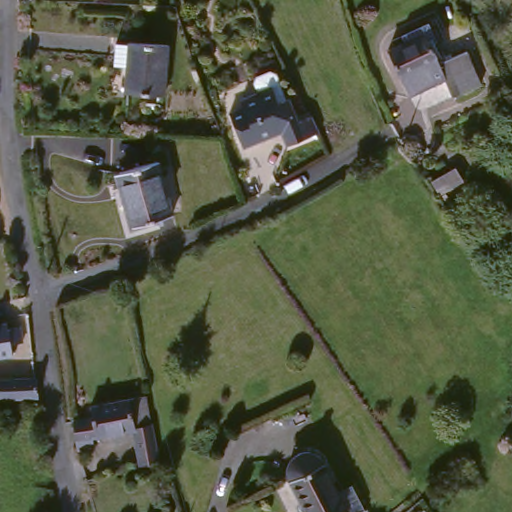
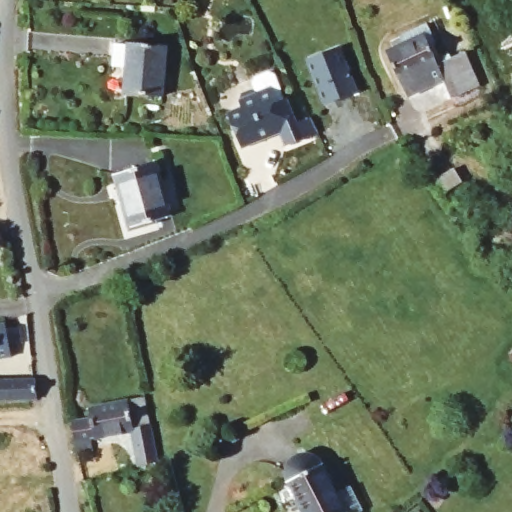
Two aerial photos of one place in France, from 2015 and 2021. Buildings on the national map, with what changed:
unchanged [(449,74),(413,91),(391,46),(408,38),(405,30),(433,17),(446,45),(438,48),(443,58),(471,46),(486,80),(458,93),(449,74)]
unchanged [(173,45),(169,96),(128,93),(130,67),(118,66),(119,43),(132,44),(132,42),(173,45)]
new [(306,59),(341,44),(359,90),(323,104),(306,59)]
unchanged [(289,144),(283,128),(268,134),(269,136),(241,147),(228,113),(241,107),(238,100),(241,95),(251,91),(253,91),(251,87),(254,79),(266,74),(274,77),(283,100),(286,99),(295,122),(310,116),(318,132),(289,144)]
unchanged [(176,211),(136,222),(122,168),(161,157),(176,211)]
unchanged [(431,182),(454,168),(463,181),(439,196),(431,182)]
unchanged [(456,219),(448,208),(456,202),(464,213),(456,219)]
unchanged [(474,222),(498,257),(488,264),(476,251),(461,231),(474,222)]
unchanged [(12,324),(23,322),(26,339),(15,339),(17,351),(0,354),(0,320),(11,318),(12,324)]
unchanged [(0,399),(0,379),(35,378),(38,398),(0,399)]
unchanged [(76,416),(96,412),(94,401),(150,391),(162,456),(143,461),(137,426),(114,430),(106,431),(96,433),(98,444),(81,447),(76,416)]
unchanged [(306,500),(293,475),(291,472),(291,470),(291,468),(291,465),(291,463),(292,460),(293,458),(294,456),(296,454),(298,452),(299,451),(301,450),(303,449),(306,448),(308,448),(311,447),(313,448),(316,448),(318,449),(320,450),(322,451),(323,453),(326,455),(326,457),(328,458),(342,487),(356,480),(368,505),(354,512),(352,507),(343,512),(304,512),(305,511),(301,503),(306,500)]

